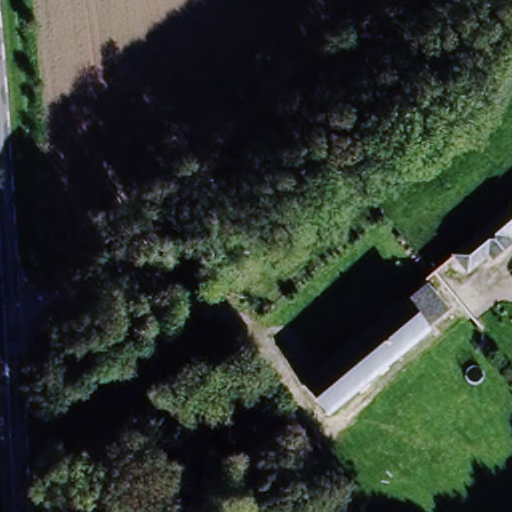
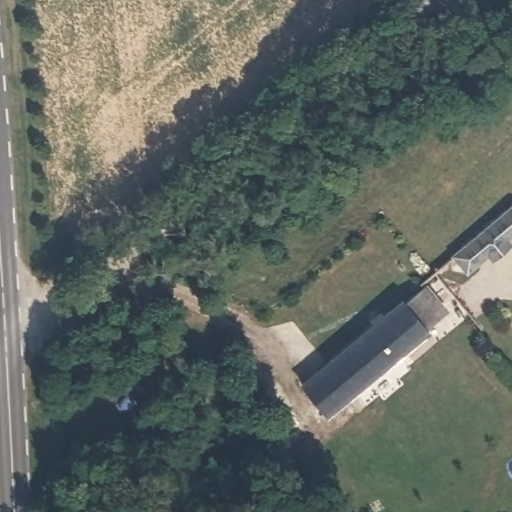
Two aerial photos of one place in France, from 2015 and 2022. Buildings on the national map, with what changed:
unchanged [(509,240),(512,243),(512,245),(492,265),(488,259),(467,275),(451,256),(512,206),(512,236),(509,240)]
unchanged [(399,300),(421,287),(445,311),(425,326),(322,415),(294,382),(399,300)]

